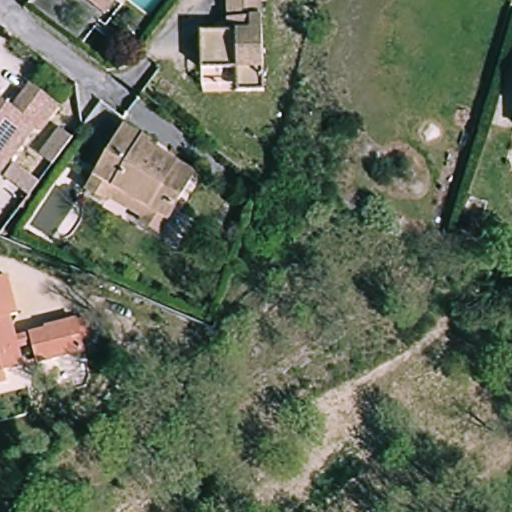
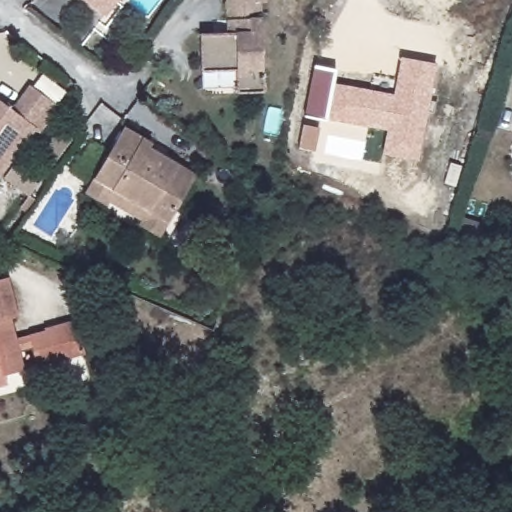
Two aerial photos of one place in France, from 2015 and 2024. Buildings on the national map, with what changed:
unchanged [(87,0),(120,0),(108,16),(87,0)]
unchanged [(242,93),(241,70),(206,71),(205,34),(231,33),(231,0),(265,0),(268,92),(242,93)]
new [(401,56),(436,63),(419,160),(383,153),(387,131),(325,120),(303,116),(315,66),(336,69),(334,82),(394,94),(401,56)]
unchanged [(31,86),(61,110),(43,133),(36,128),(0,176),(0,101),(13,111),(31,86)]
unchanged [(150,144),(148,147),(193,175),(158,235),(138,224),(141,220),(107,200),(105,204),(85,193),(123,128),(150,144)]
unchanged [(0,280),(6,278),(16,316),(9,318),(15,339),(45,331),(44,329),(74,321),(75,323),(84,320),(88,337),(79,340),(82,353),(37,365),(33,345),(17,349),(22,368),(3,373),(1,374),(5,384),(0,386),(0,280)]

